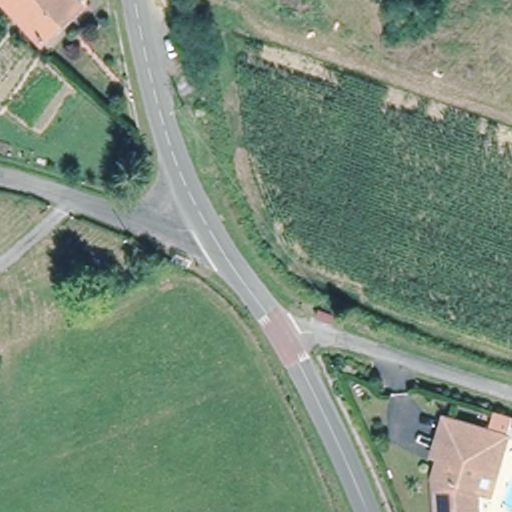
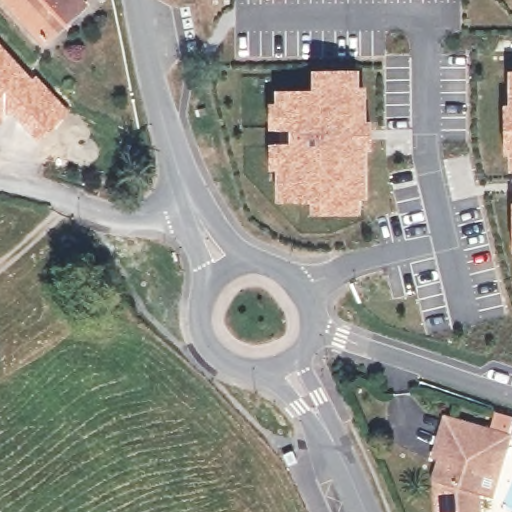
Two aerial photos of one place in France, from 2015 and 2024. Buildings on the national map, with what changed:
unchanged [(7,0),(77,0),(82,5),(45,40),(7,0)]
new [(36,74),(71,111),(36,141),(8,113),(0,121),(0,42),(32,77),(36,74)]
new [(363,174),(363,196),(353,196),(354,210),(316,210),(315,197),(279,198),(279,168),(268,168),(268,146),(279,146),(292,146),(292,127),(278,127),(268,127),(268,105),(278,105),(278,93),(316,93),(316,76),(353,75),(353,89),(363,89),(363,112),(360,111),(360,125),(370,125),(370,146),(360,146),(353,147),(353,152),(363,152),(363,174)]
unchanged [(205,108),(207,114),(200,116),(197,110),(205,108)]
new [(502,152),(502,131),(502,108),(512,108),(512,152),(502,152)]
new [(511,260),(511,233),(511,206),(512,206),(512,260),(511,260)]
unchanged [(491,478),(477,474),(472,491),(473,512),(432,512),(430,478),(435,458),(428,456),(431,448),(440,417),(484,430),(489,414),(508,420),(503,436),(497,457),(491,478)]

